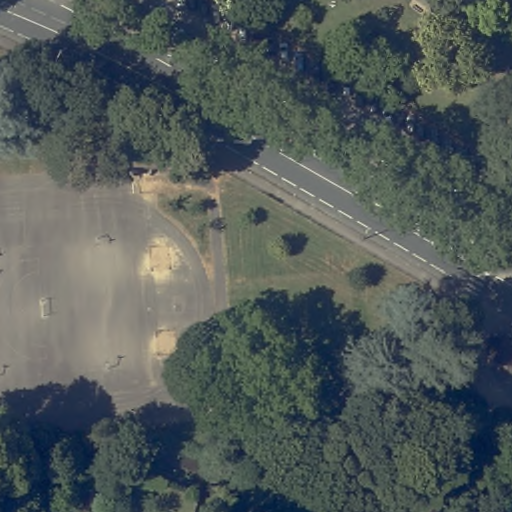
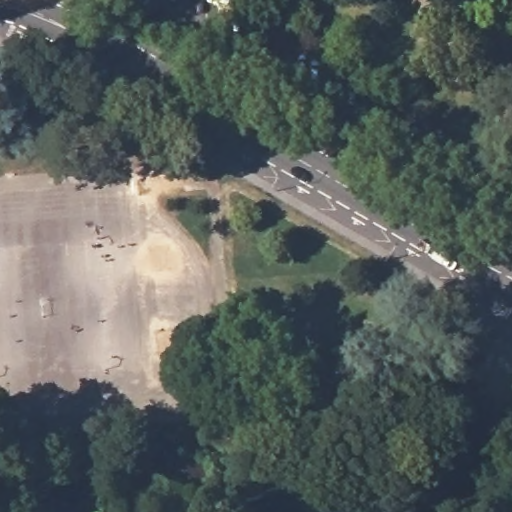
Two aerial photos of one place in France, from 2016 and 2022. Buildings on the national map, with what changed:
unchanged [(499,346),(492,343),(498,333),(503,337),(506,333),(512,337),(512,357),(497,349),(499,346)]

